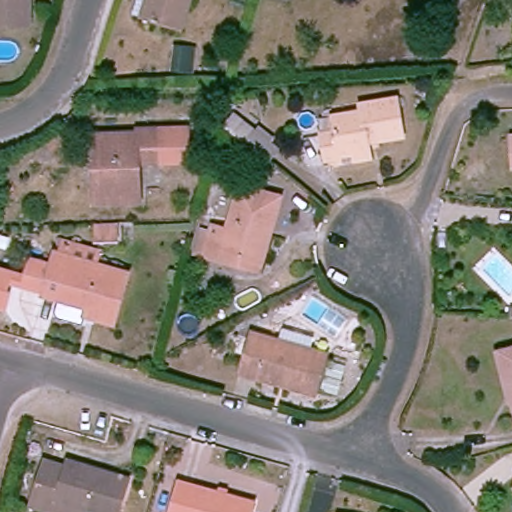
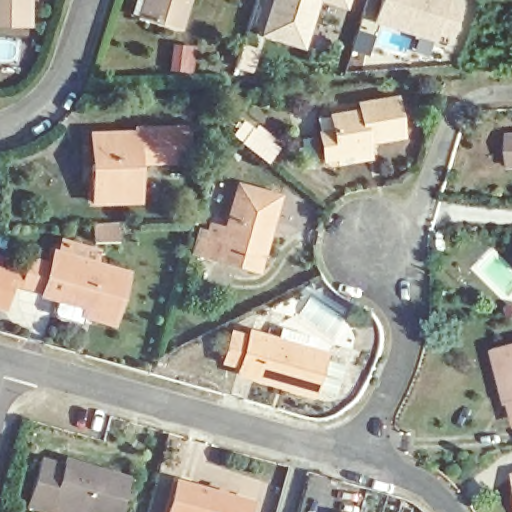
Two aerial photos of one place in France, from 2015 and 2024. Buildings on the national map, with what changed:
unchanged [(33,29),(0,28),(0,0),(33,0),(33,29)]
unchanged [(137,0),(190,0),(180,34),(141,22),(142,16),(134,14),(137,0)]
new [(259,36),(271,0),(348,0),(345,9),(317,1),(303,50),(259,36)]
new [(372,22),(379,0),(447,0),(461,5),(450,39),(435,35),(434,42),(372,22)]
unchanged [(339,165),(338,159),(323,160),(321,130),(336,128),(336,115),(362,113),(366,105),(401,102),(405,139),(366,143),(367,150),(367,164),(339,165)]
unchanged [(233,111),(254,127),(259,125),(283,142),(265,166),(219,125),(233,111)]
unchanged [(188,167),(138,167),(140,201),(94,202),(93,168),(93,138),(98,137),(137,137),(137,132),(188,132),(188,167)]
unchanged [(507,140),(512,140),(512,168),(507,169),(507,140)]
unchanged [(216,261),(203,256),(211,224),(227,227),(237,187),(281,200),(273,231),(261,275),(216,261)]
unchanged [(119,241),(101,242),(101,224),(119,223),(119,241)]
unchanged [(94,318),(96,310),(47,294),(26,287),(34,260),(55,266),(59,254),(131,274),(116,324),(94,318)]
unchanged [(320,396),(246,375),(258,333),(331,355),(320,396)]
unchanged [(495,356),(512,352),(512,422),(504,395),(495,356)]
unchanged [(88,512),(52,502),(49,512),(42,512),(25,507),(38,462),(61,468),(64,461),(126,478),(116,512),(88,512)]
unchanged [(167,512),(175,483),(247,502),(245,512),(167,512)]

